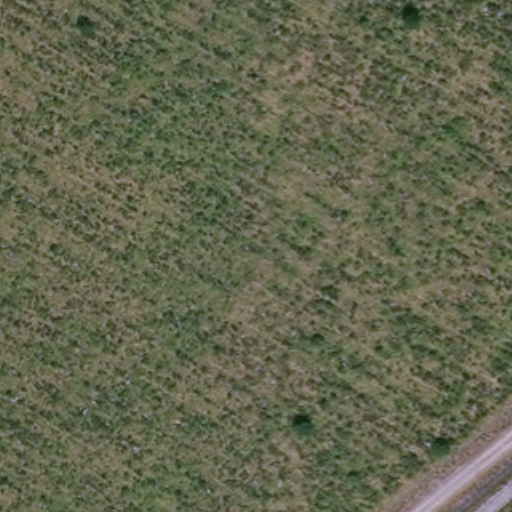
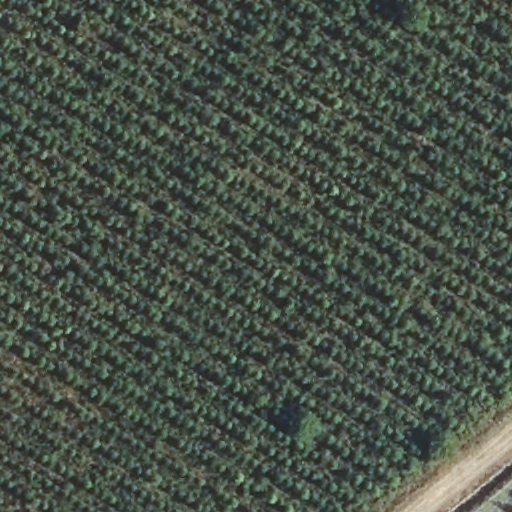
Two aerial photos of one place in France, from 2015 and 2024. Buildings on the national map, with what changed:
[]

